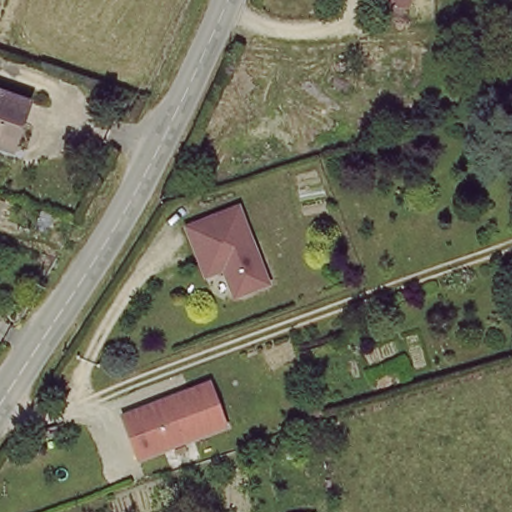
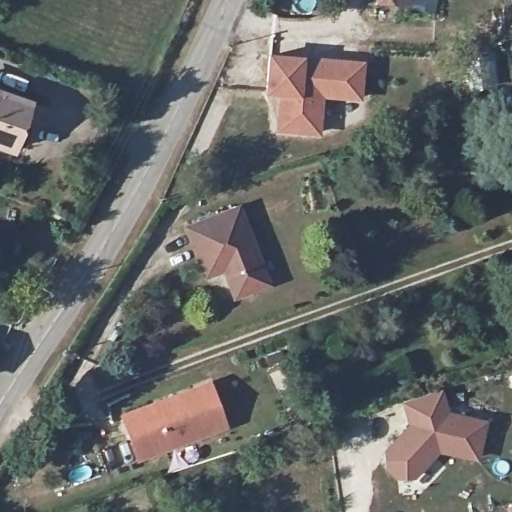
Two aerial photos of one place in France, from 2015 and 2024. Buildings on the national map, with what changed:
unchanged [(396,4),(383,0),(414,0),(410,9),(396,4)]
demolished [(453,0),(489,0),(486,10),(453,0)]
demolished [(489,0),(512,0),(512,15),(486,10),(489,0)]
new [(304,56),(363,61),(359,100),(324,97),(320,136),(274,133),(275,95),(263,94),(267,52),(304,56)]
unchanged [(14,158),(0,153),(0,102),(28,112),(14,158)]
unchanged [(235,200),(264,276),(231,288),(221,261),(202,267),(184,219),(235,200)]
unchanged [(184,392),(204,385),(220,427),(133,459),(118,417),(147,406),(184,392)]
new [(419,390),(426,414),(464,423),(457,458),(419,449),(394,476),(379,478),(368,468),(367,453),(392,425),(383,401),(419,390)]

